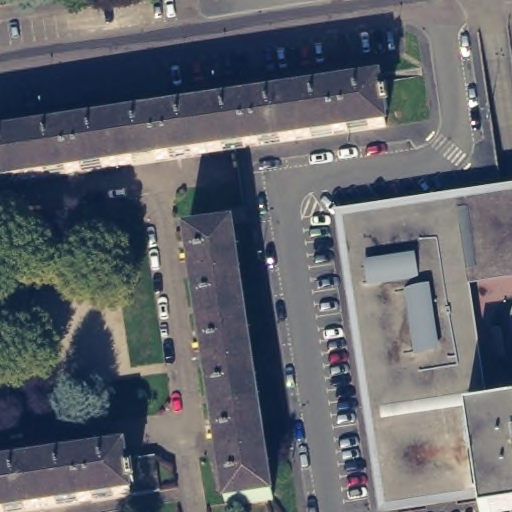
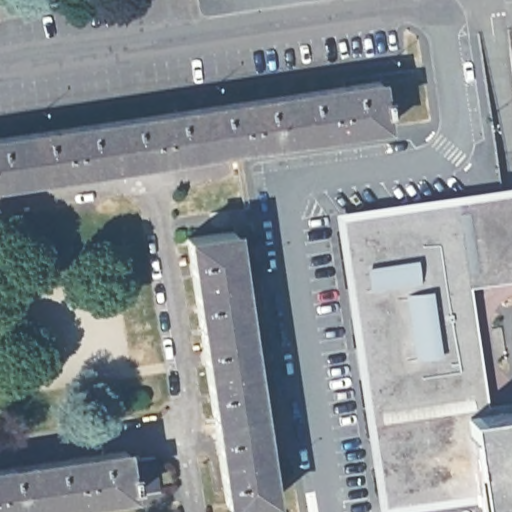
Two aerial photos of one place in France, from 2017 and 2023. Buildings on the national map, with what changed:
unchanged [(382,93),(384,106),(380,106),(382,122),(217,147),(0,179),(0,133),(375,77),(378,94),(382,93)]
unchanged [(512,189),(512,252),(460,260),(480,406),(464,407),(474,470),(474,471),(399,481),(360,212),(512,189)]
unchanged [(227,502),(187,232),(234,226),(273,495),(227,502)]
unchanged [(496,358),(492,329),(501,328),(505,357),(496,358)]
unchanged [(480,406),(512,401),(512,464),(475,470),(474,471),(474,470),(464,407),(480,406)]
unchanged [(122,455),(150,451),(155,487),(0,510),(0,463),(120,445),(122,455)]
unchanged [(495,512),(481,512),(475,470),(512,464),(512,509),(495,512)]

